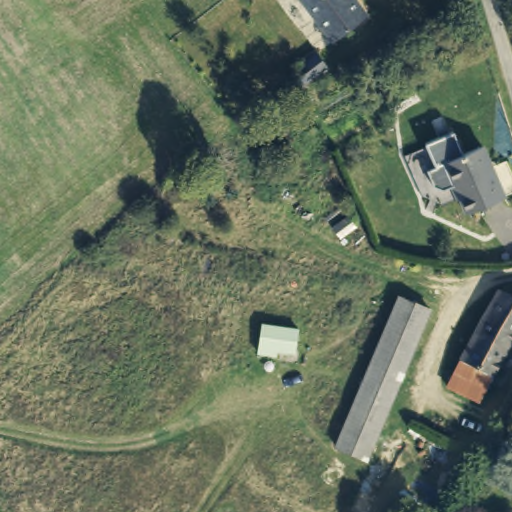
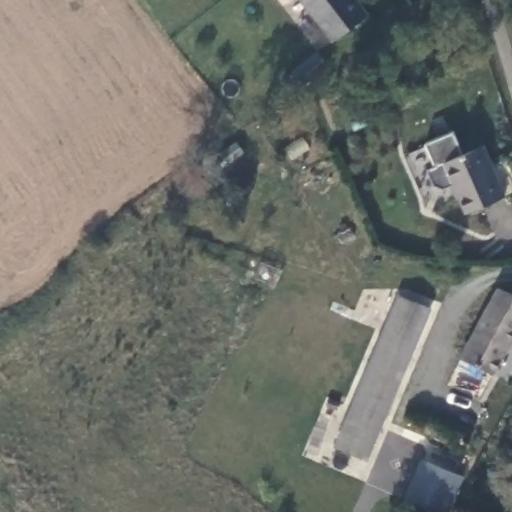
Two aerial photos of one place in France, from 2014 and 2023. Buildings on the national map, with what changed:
unchanged [(369,17),(332,44),(299,0),(355,0),(369,17)]
unchanged [(312,49),(323,61),(298,81),(288,69),(312,49)]
unchanged [(505,200),(469,216),(458,189),(454,190),(444,167),(483,150),(505,200)]
unchanged [(499,288),(512,295),(512,332),(490,369),(461,352),(499,288),(499,287),(499,288)]
unchanged [(363,455),(336,443),(399,295),(426,306),(363,455)]
unchanged [(475,394),(446,377),(461,352),(490,369),(475,394)]

